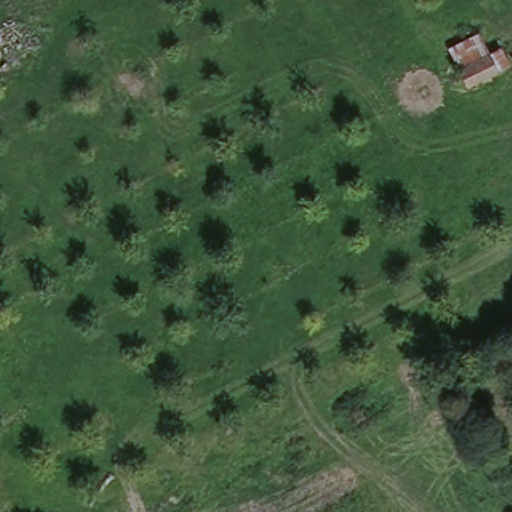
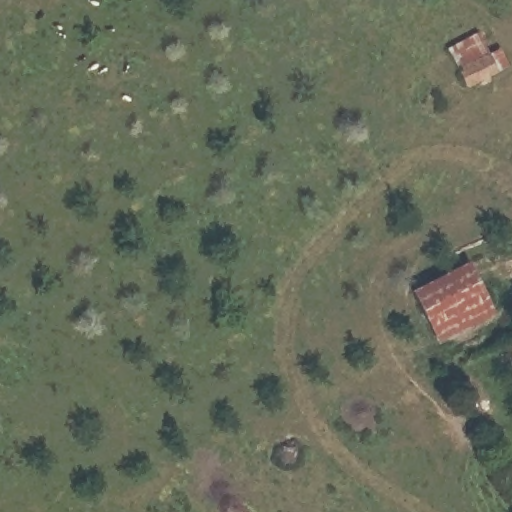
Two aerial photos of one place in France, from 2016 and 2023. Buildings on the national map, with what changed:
unchanged [(500,66),(469,81),(462,66),(457,54),(480,42),(486,55),(493,50),(500,66)]
new [(472,261),(497,313),(440,338),(414,285),(472,261)]

